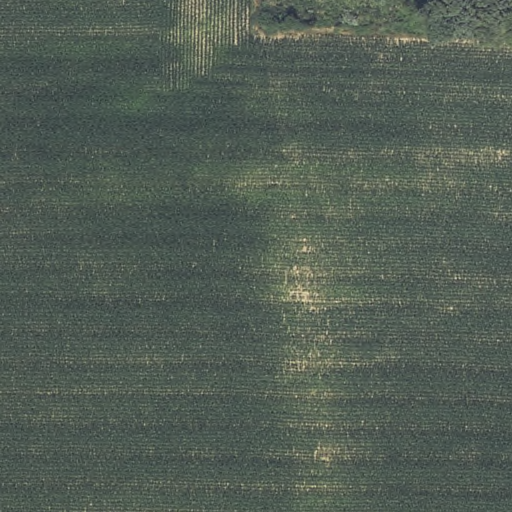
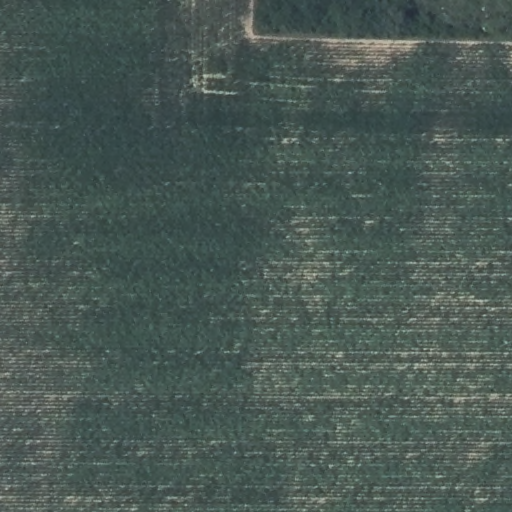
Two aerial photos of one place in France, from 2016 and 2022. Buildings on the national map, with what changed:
[]

